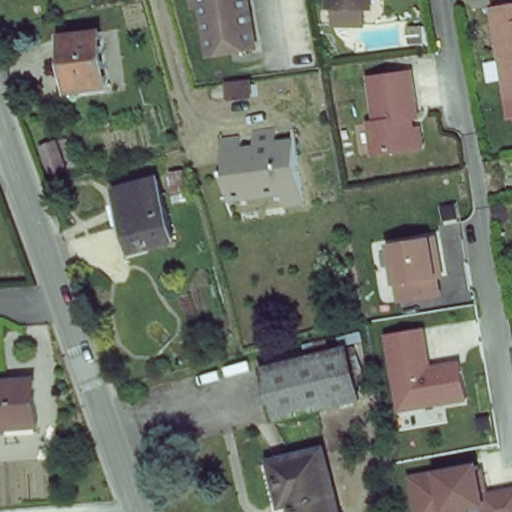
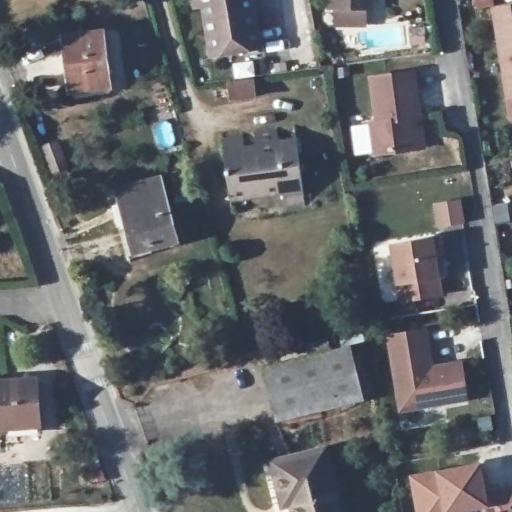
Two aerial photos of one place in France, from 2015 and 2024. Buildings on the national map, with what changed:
unchanged [(257,44),(210,51),(204,1),(195,2),(195,0),(251,0),(257,44)]
unchanged [(365,14),(336,14),(336,0),(366,0),(365,14)]
unchanged [(487,10),(512,8),(512,93),(499,94),(487,10)]
unchanged [(422,26),(424,41),(412,43),(410,28),(422,26)]
unchanged [(69,93),(62,41),(102,34),(110,87),(69,93)]
unchanged [(422,116),(418,118),(423,148),(371,156),(366,126),(372,123),(365,77),(416,72),(422,116)]
unchanged [(228,97),(226,85),(249,81),(252,93),(228,97)]
unchanged [(285,213),(284,208),(282,203),(235,209),(225,145),(246,142),(248,154),(265,152),(265,139),(284,137),(286,149),(296,148),(304,204),(305,211),(285,213)]
unchanged [(46,173),(36,150),(53,143),(62,168),(46,173)]
unchanged [(139,250),(132,225),(123,228),(116,204),(126,201),(123,187),(161,178),(178,242),(139,250)]
unchanged [(447,299),(404,305),(392,245),(438,236),(447,299)]
unchanged [(425,329),(430,364),(462,359),(469,404),(398,416),(384,336),(425,329)]
unchanged [(281,416),(270,367),(353,347),(363,397),(281,416)]
unchanged [(0,426),(0,384),(38,380),(41,421),(0,426)]
unchanged [(345,512),(299,512),(296,503),(287,505),(271,460),(320,444),(345,512)]
unchanged [(512,488),(512,512),(483,512),(482,510),(473,512),(417,512),(408,475),(478,463),(487,492),(512,488)]

